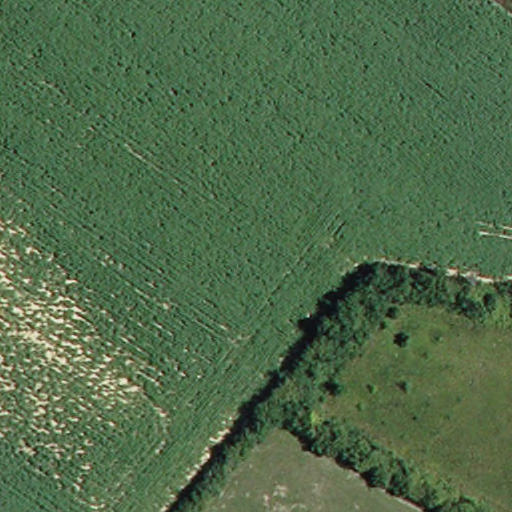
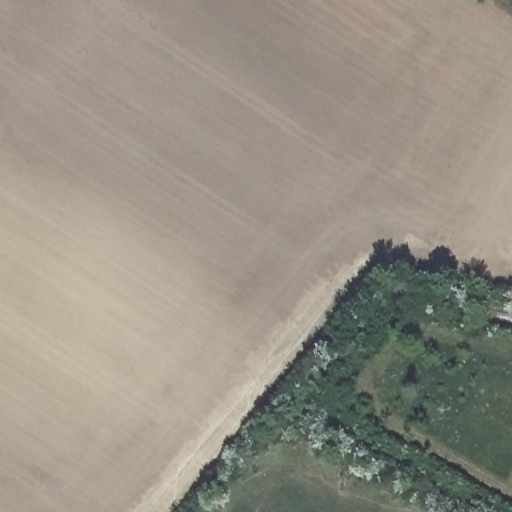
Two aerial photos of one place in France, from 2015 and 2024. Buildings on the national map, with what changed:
[]

